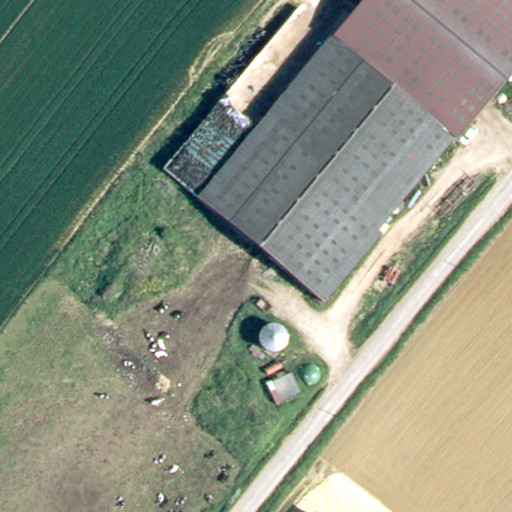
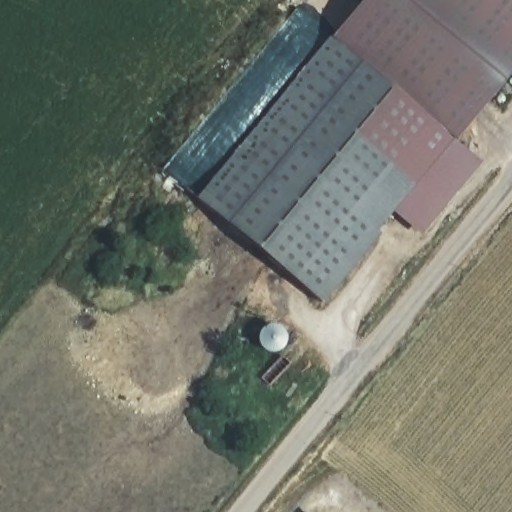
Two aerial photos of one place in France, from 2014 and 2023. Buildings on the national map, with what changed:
unchanged [(512,0),(512,67),(454,139),(331,39),(364,0),(512,0)]
unchanged [(454,139),(395,212),(379,231),(384,235),(326,304),(199,201),(331,39),(454,139)]
new [(482,164),(422,237),(395,212),(454,139),(482,164)]

